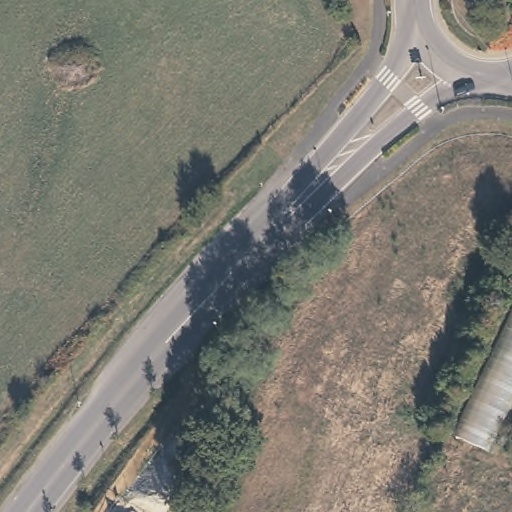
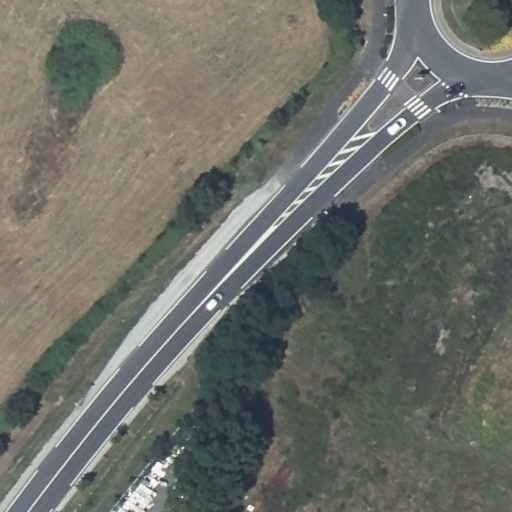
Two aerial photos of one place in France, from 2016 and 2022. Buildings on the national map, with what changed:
demolished [(447,433),(512,308),(512,402),(488,452),(447,433)]

